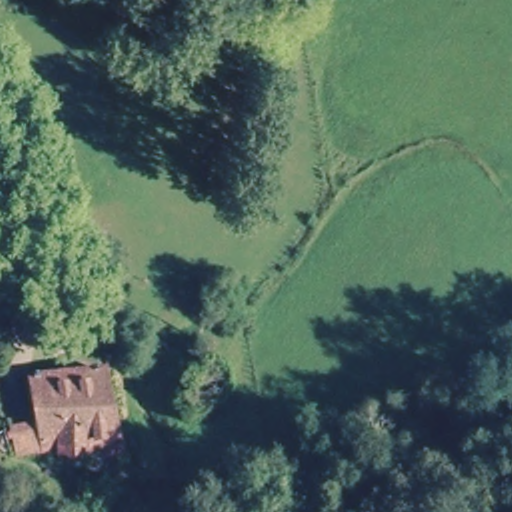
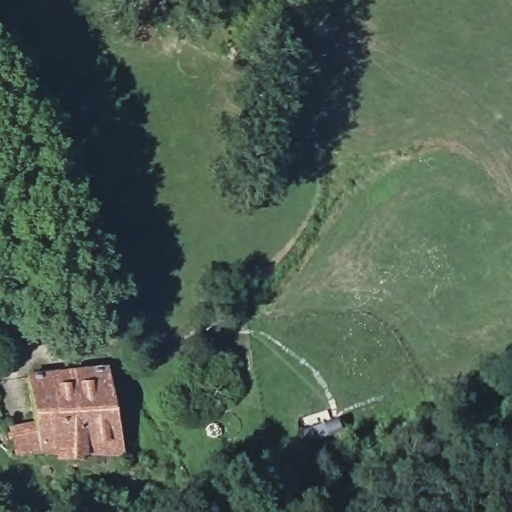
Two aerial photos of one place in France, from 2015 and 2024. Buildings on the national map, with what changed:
unchanged [(37,423),(37,379),(46,379),(56,379),(117,380),(116,461),(37,461),(37,423)]
unchanged [(10,461),(9,423),(37,423),(37,461),(10,461)]

